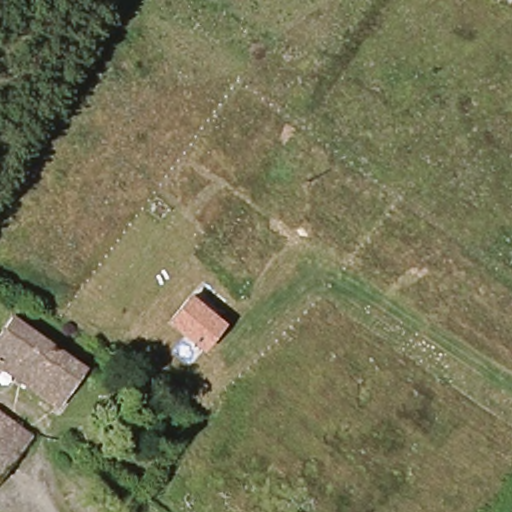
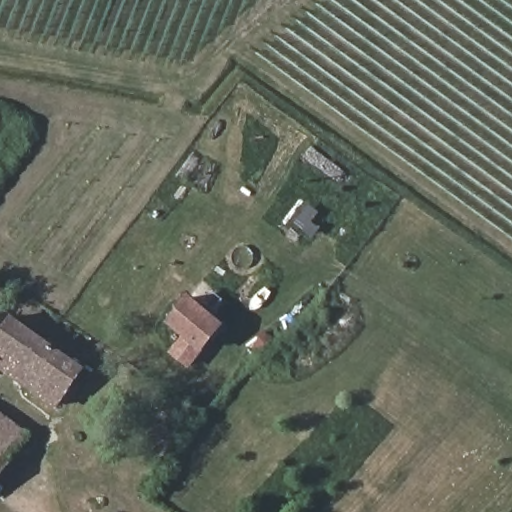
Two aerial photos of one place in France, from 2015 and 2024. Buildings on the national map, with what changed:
unchanged [(208,348),(175,325),(183,313),(191,301),(225,323),(214,340),(208,348)]
unchanged [(63,406),(31,380),(20,393),(0,377),(0,376),(2,372),(0,370),(0,347),(22,317),(91,369),(63,406)]
unchanged [(33,441),(0,479),(0,415),(33,441)]

